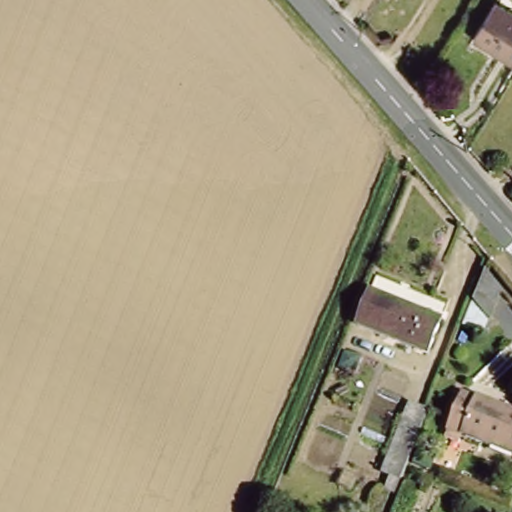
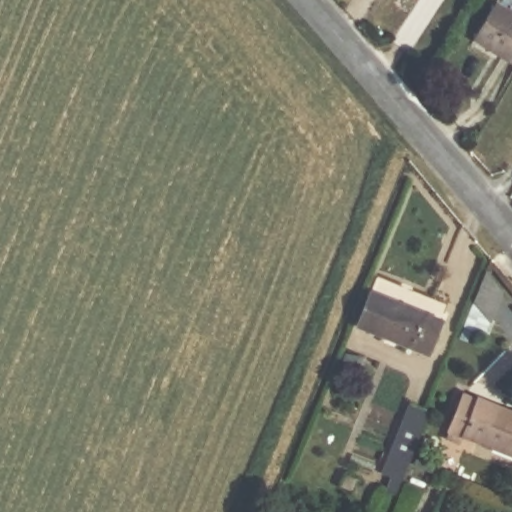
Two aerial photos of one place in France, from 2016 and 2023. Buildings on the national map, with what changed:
unchanged [(498,0),(512,0),(512,47),(481,28),(498,0)]
unchanged [(491,270),(504,286),(493,312),(479,296),(491,270)]
unchanged [(374,291),(441,318),(428,351),(361,324),(374,291)]
unchanged [(499,403),(497,409),(512,415),(512,450),(449,426),(461,395),(476,401),(478,395),(499,403)]
unchanged [(408,400),(429,409),(396,495),(384,491),(389,476),(380,473),(408,400)]

